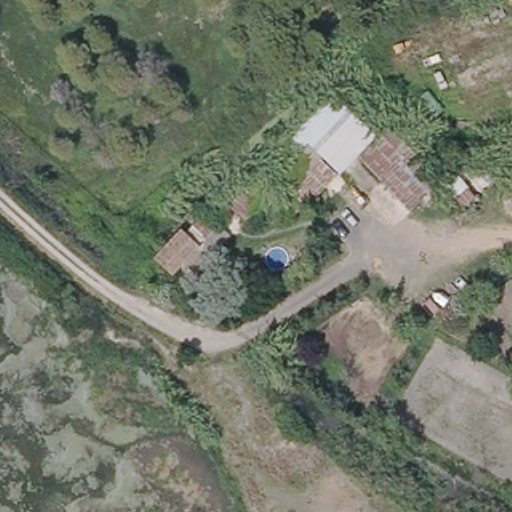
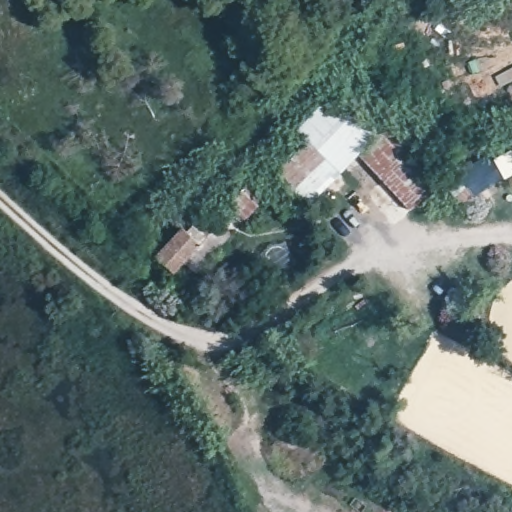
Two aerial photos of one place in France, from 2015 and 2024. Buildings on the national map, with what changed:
unchanged [(281,193),(300,170),(283,154),(350,94),(440,180),(409,204),(362,156),(300,216),(281,193)]
unchanged [(469,164),(488,186),(465,206),(446,187),(469,164)]
unchanged [(182,260),(175,270),(155,255),(180,226),(185,230),(191,222),(217,245),(195,271),(182,260)]

